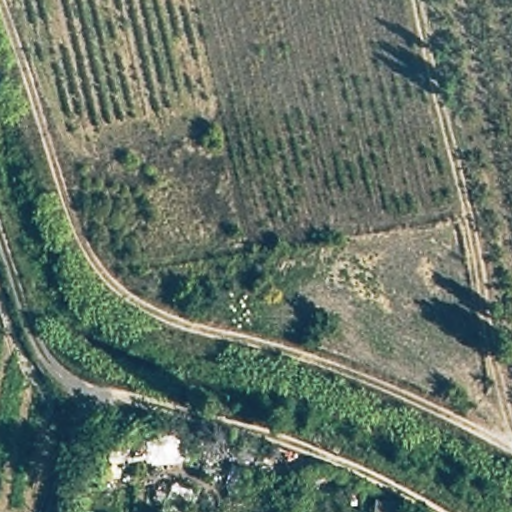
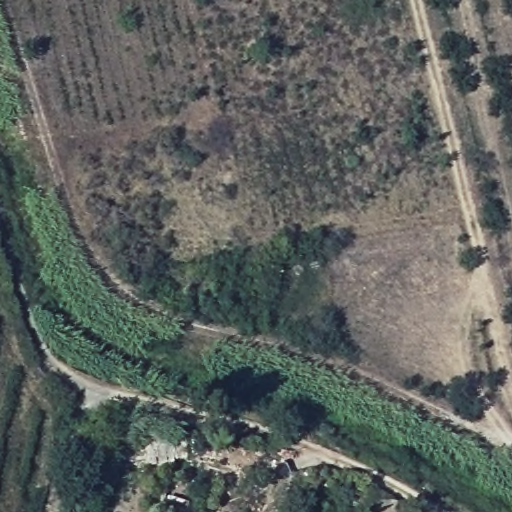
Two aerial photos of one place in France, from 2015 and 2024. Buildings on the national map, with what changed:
unchanged [(108,451),(158,443),(160,462),(111,469),(108,451)]

